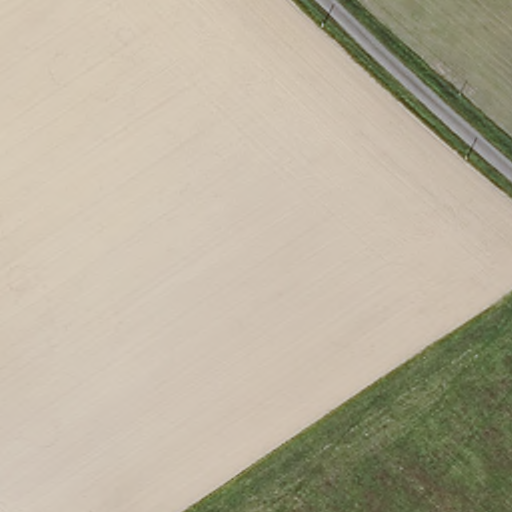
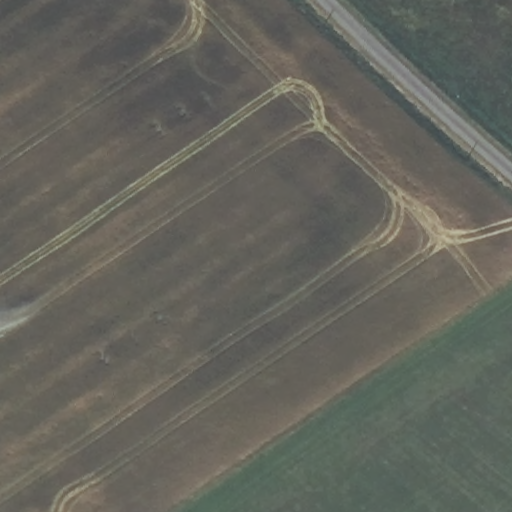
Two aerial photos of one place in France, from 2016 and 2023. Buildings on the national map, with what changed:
[]

